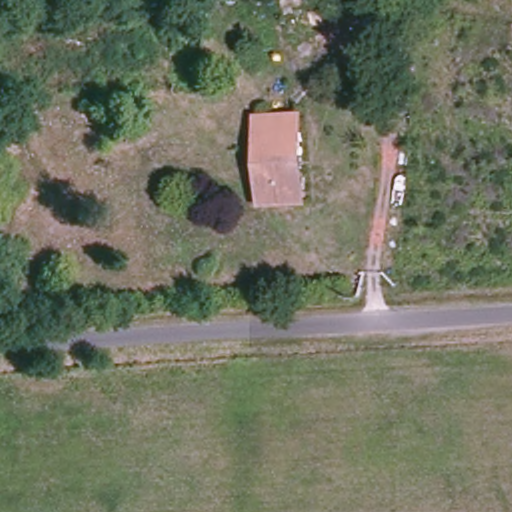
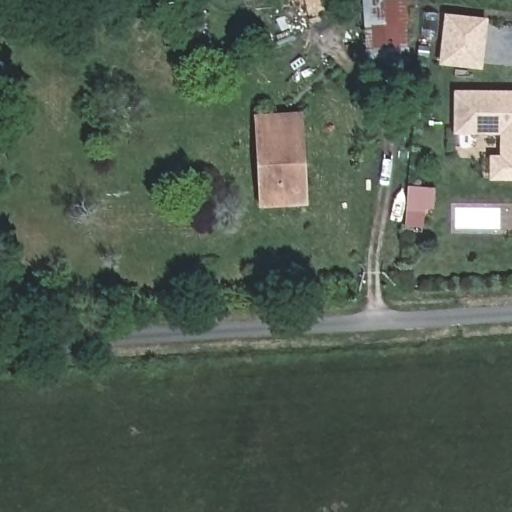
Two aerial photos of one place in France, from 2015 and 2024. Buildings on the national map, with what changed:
new [(366,61),(362,0),(404,0),(408,59),(366,61)]
new [(485,69),(440,64),(446,16),(489,20),(485,69)]
new [(489,181),(490,156),(500,156),(499,135),(453,135),(454,90),(512,91),(512,181),(489,181)]
unchanged [(257,120),(301,116),(305,199),(263,202),(257,120)]

